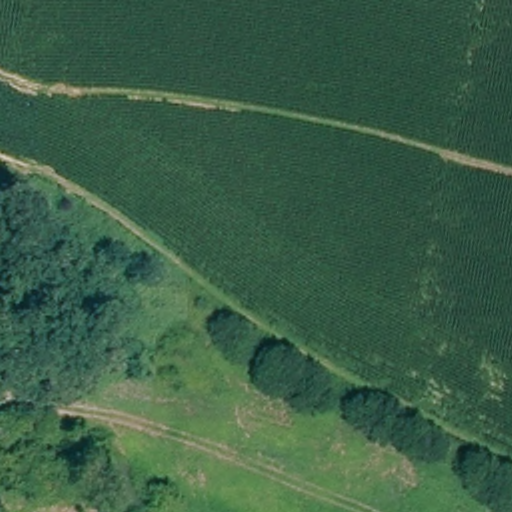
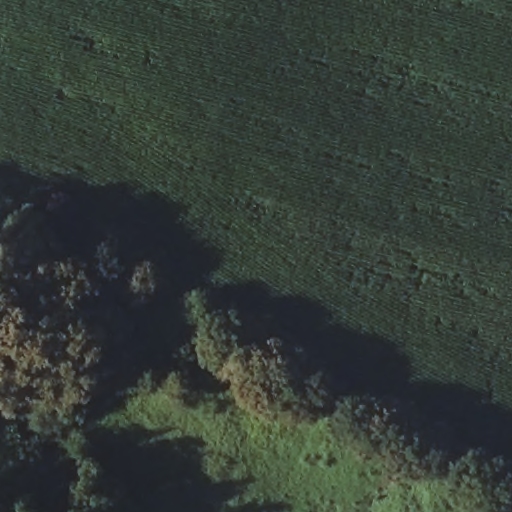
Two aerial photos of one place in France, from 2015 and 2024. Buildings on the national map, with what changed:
[]

